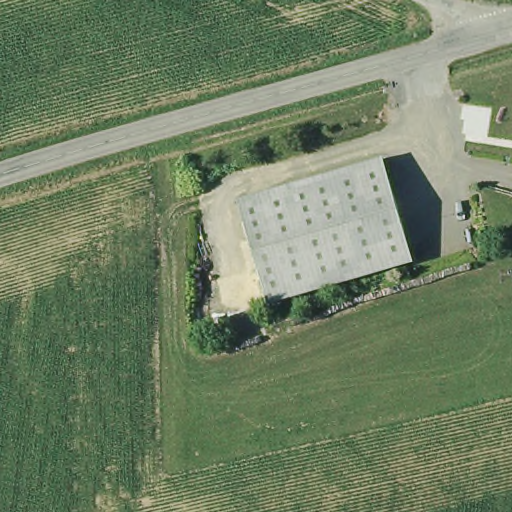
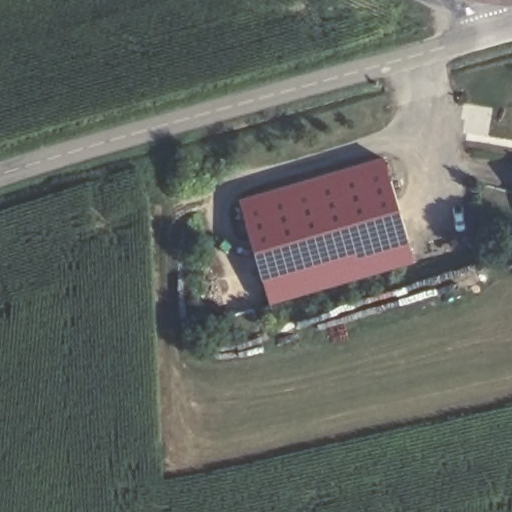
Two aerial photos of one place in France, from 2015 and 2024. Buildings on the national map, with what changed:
unchanged [(383,161),(412,264),(267,305),(238,202),(383,161)]

